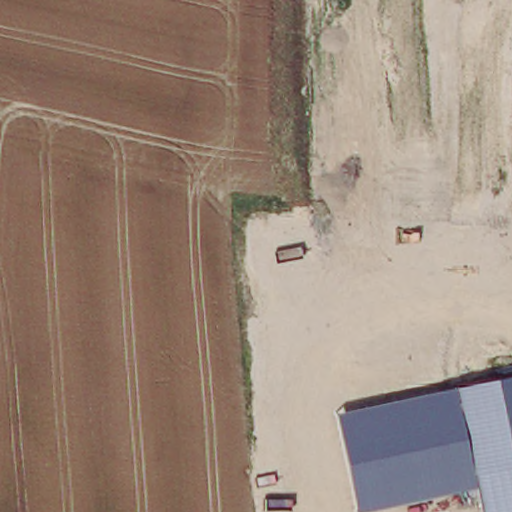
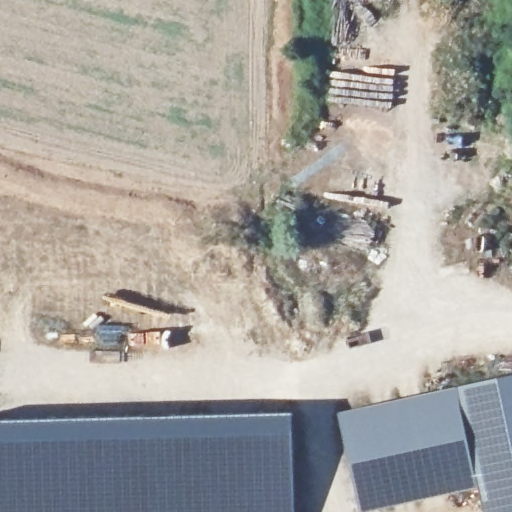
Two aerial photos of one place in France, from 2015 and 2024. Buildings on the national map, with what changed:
unchanged [(512,376),(512,512),(482,512),(476,487),(364,512),(359,512),(337,412),(512,376)]
new [(292,411),(295,512),(0,512),(0,419),(15,418),(292,411)]

